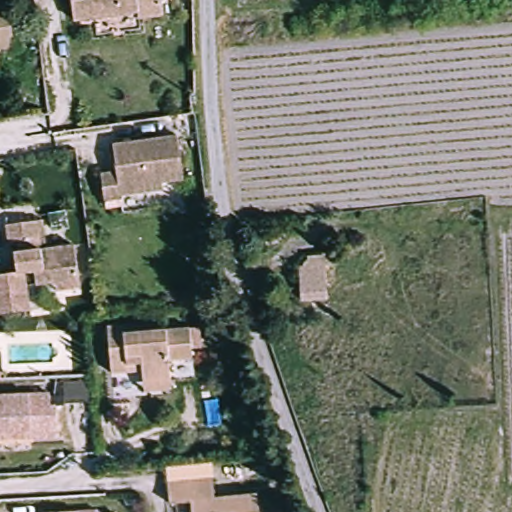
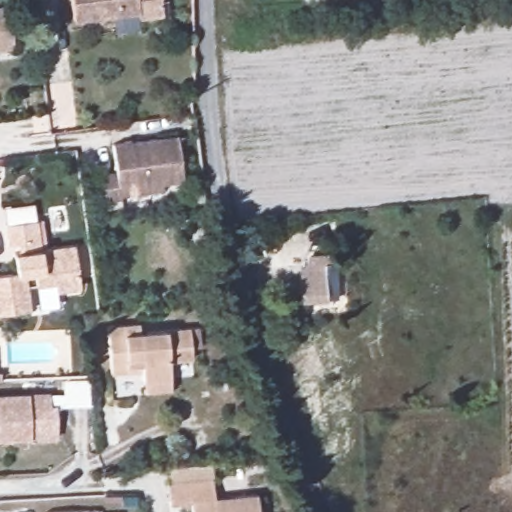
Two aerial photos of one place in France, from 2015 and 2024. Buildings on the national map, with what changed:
unchanged [(18,42),(0,44),(0,1),(9,0),(13,0),(18,42)]
unchanged [(163,20),(138,22),(137,17),(94,22),(73,25),(70,0),(160,0),(163,20)]
unchanged [(104,206),(100,179),(116,177),(112,149),(178,140),(184,185),(163,187),(164,195),(164,197),(122,204),(104,206)]
unchanged [(36,296),(27,297),(30,320),(0,324),(0,285),(18,282),(14,255),(9,255),(6,235),(37,231),(43,230),(47,258),(74,255),(80,289),(81,297),(56,301),(55,292),(36,296)]
unchanged [(328,300),(303,301),(300,266),(305,266),(310,258),(325,257),(324,256),(335,255),(336,264),(326,265),(328,300)]
unchanged [(144,387),(143,377),(142,367),(111,369),(107,322),(139,318),(140,327),(190,322),(192,354),(169,356),(171,374),(172,385),(144,387)]
unchanged [(45,401),(51,401),(53,432),(0,434),(0,390),(45,388),(45,401)]
unchanged [(169,505),(168,484),(166,467),(211,463),(213,480),(215,498),(257,494),(259,512),(176,512),(176,504),(169,505)]
unchanged [(76,506),(76,512),(24,512),(24,508),(76,506)]

